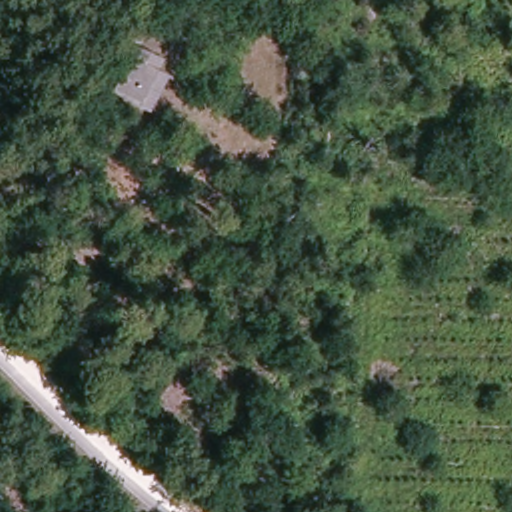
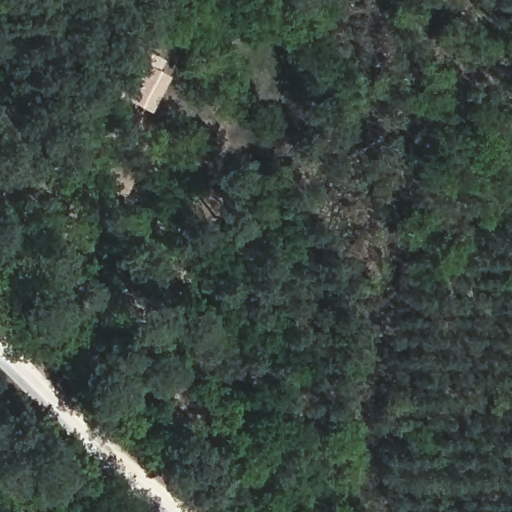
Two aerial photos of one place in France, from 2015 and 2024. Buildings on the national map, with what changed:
unchanged [(146,103),(123,94),(138,61),(165,72),(146,103)]

